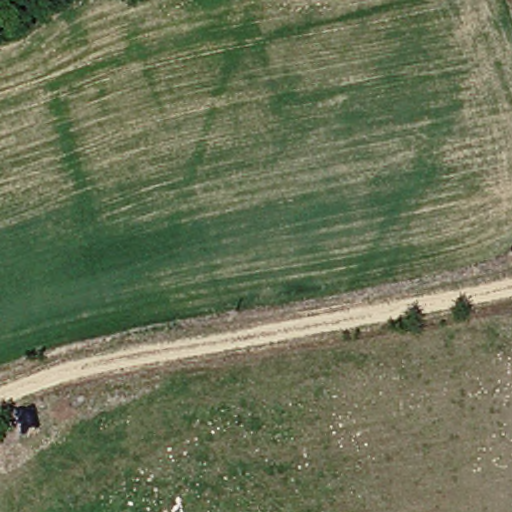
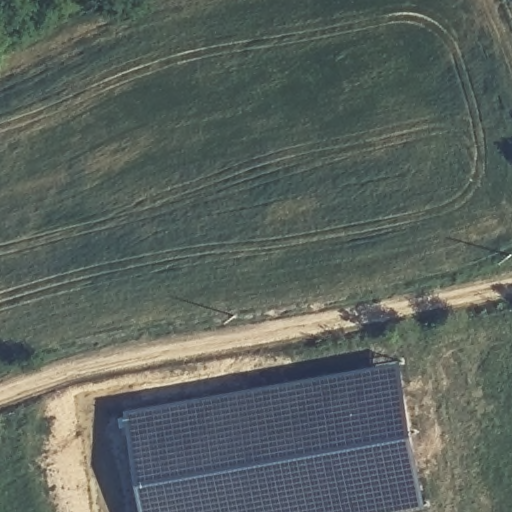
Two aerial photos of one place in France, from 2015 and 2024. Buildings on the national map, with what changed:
new [(129,409),(406,358),(431,503),(378,512),(147,512),(129,409)]

